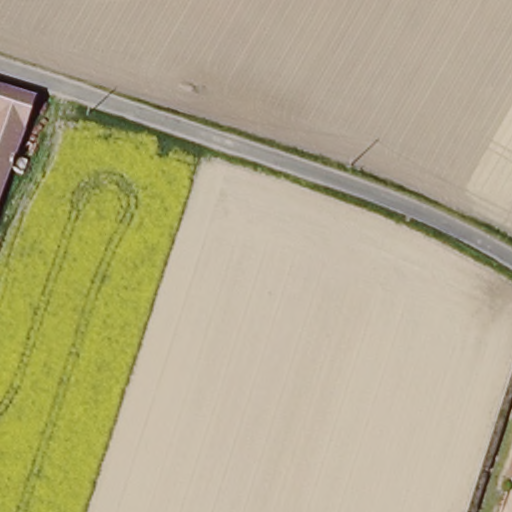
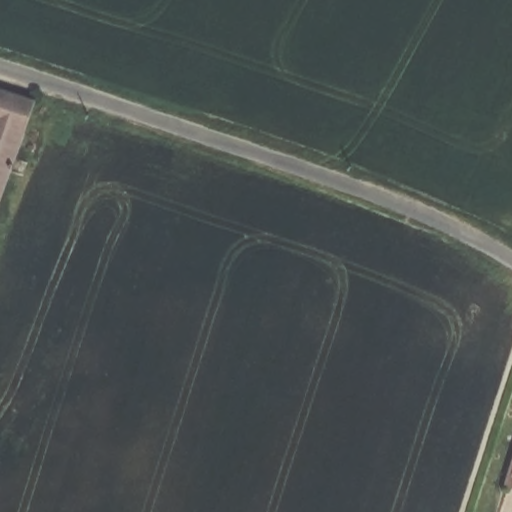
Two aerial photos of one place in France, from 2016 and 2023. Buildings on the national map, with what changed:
unchanged [(12,158),(24,162),(19,176),(7,172),(0,192),(0,90),(32,100),(12,158)]
unchanged [(512,451),(512,480),(503,477),(512,451)]

